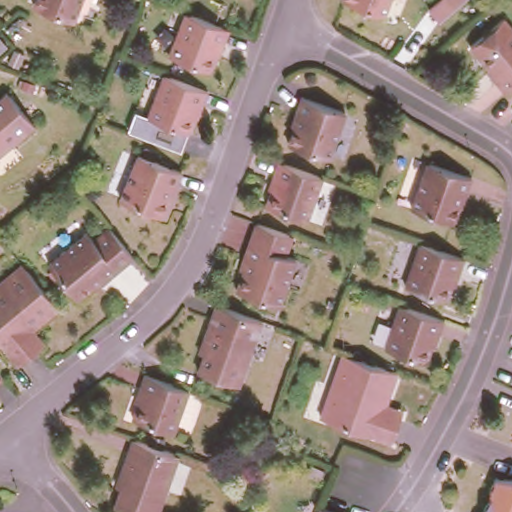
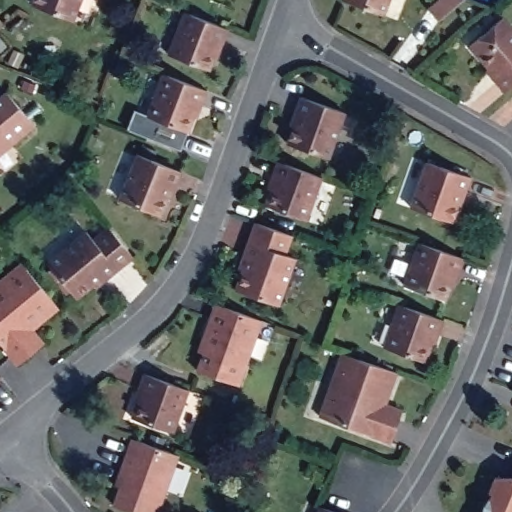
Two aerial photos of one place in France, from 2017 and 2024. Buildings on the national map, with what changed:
unchanged [(72,16),(35,1),(35,0),(78,0),(72,16)]
unchanged [(384,14),(348,0),(389,0),(384,14)]
unchanged [(440,20),(430,9),(440,0),(463,0),(440,20)]
unchanged [(220,42),(217,40),(205,67),(166,52),(184,9),(226,27),(220,42)]
unchanged [(502,13),(512,25),(512,80),(504,87),(494,75),(497,73),(470,40),(502,13)]
unchanged [(0,35),(2,33),(9,41),(0,49),(0,35)]
unchanged [(204,103),(199,101),(187,129),(147,113),(164,71),(209,89),(204,103)]
unchanged [(0,153),(0,95),(7,89),(37,123),(0,153)]
unchanged [(343,110),(327,155),(287,141),(297,111),(294,110),(300,94),(343,110)]
unchanged [(172,185),(169,184),(158,211),(117,194),(134,150),(179,168),(172,185)]
unchanged [(463,185),(452,214),(410,200),(427,155),(472,171),(465,187),(463,185)]
unchanged [(305,217),(264,203),(274,175),(270,174),(276,158),(320,174),(305,217)]
unchanged [(245,253),(257,219),(295,233),(289,252),(298,255),(282,303),(239,287),(244,271),(240,270),(245,253)]
unchanged [(92,281),(75,295),(70,288),(65,291),(47,268),(50,264),(46,258),(85,227),(93,237),(109,225),(132,254),(105,276),(95,285),(92,281)]
unchanged [(457,271),(454,270),(445,297),(404,282),(419,240),(463,256),(457,271)]
unchanged [(17,360),(0,339),(0,276),(22,258),(27,264),(58,302),(30,324),(44,339),(37,344),(17,360)]
unchanged [(195,369),(202,350),(197,349),(204,331),(215,301),(260,318),(237,384),(195,369)]
unchanged [(435,334),(432,332),(422,359),(382,344),(397,302),(442,318),(435,334)]
unchanged [(401,414),(392,439),(321,414),(332,381),(344,350),(351,352),(398,369),(386,401),(404,407),(401,414)]
unchanged [(172,430),(131,416),(142,383),(139,382),(145,366),(189,382),(172,430)]
unchanged [(122,485),(117,483),(122,466),(134,435),(180,452),(159,512),(137,512),(115,504),(122,485)]
unchanged [(476,512),(483,492),(480,491),(486,475),(508,474),(512,464),(512,512),(476,512)]
unchanged [(346,512),(322,512),(325,504),(346,512)]

